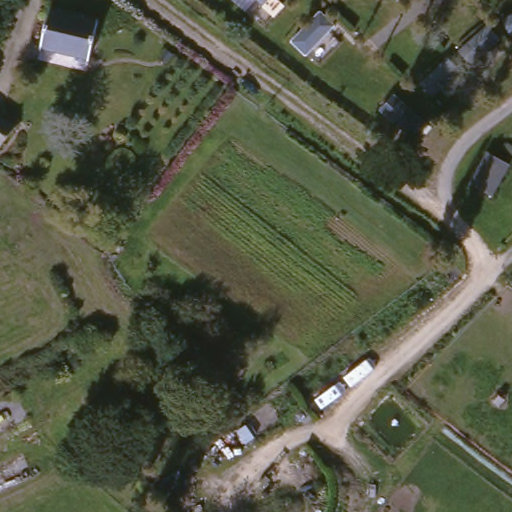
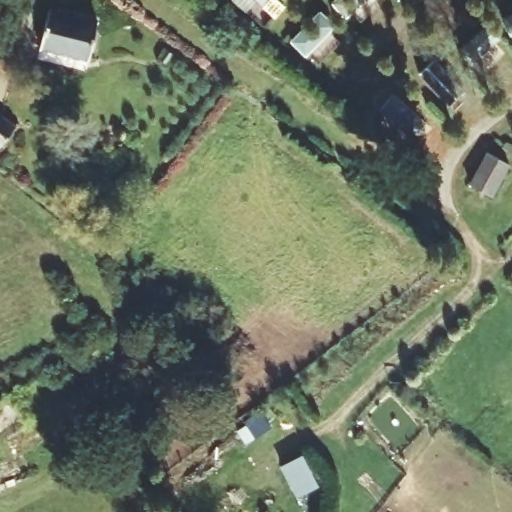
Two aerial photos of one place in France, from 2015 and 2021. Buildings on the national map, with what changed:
unchanged [(89,67),(40,61),(46,22),(96,30),(89,67)]
unchanged [(15,134),(0,155),(0,123),(15,134)]
new [(318,487),(296,497),(280,466),(302,456),(318,487)]

